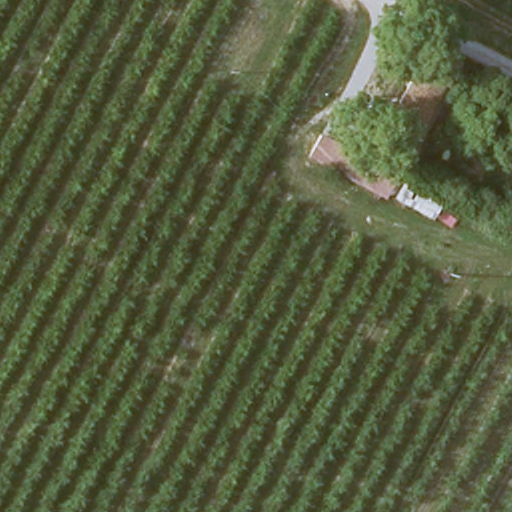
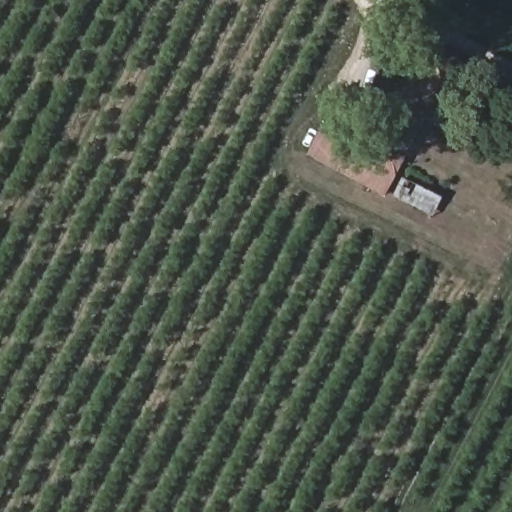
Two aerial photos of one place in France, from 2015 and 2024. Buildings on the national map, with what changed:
unchanged [(384,194),(307,156),(319,132),(397,170),(384,194)]

